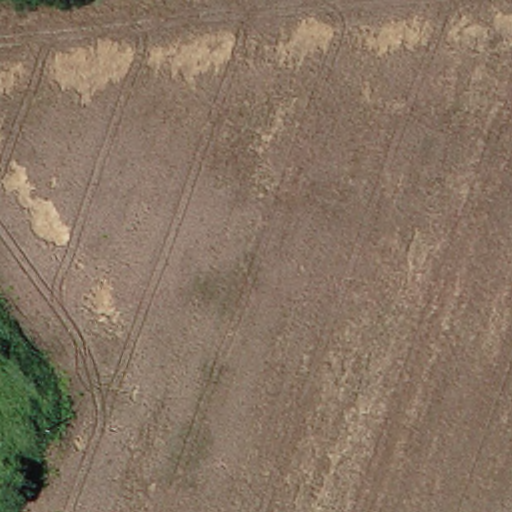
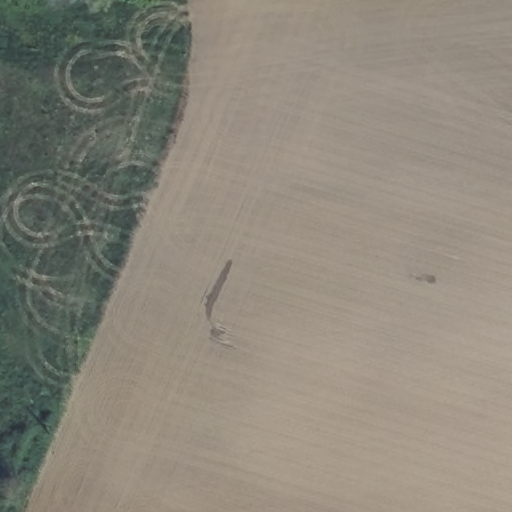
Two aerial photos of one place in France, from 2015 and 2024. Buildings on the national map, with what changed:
[]

